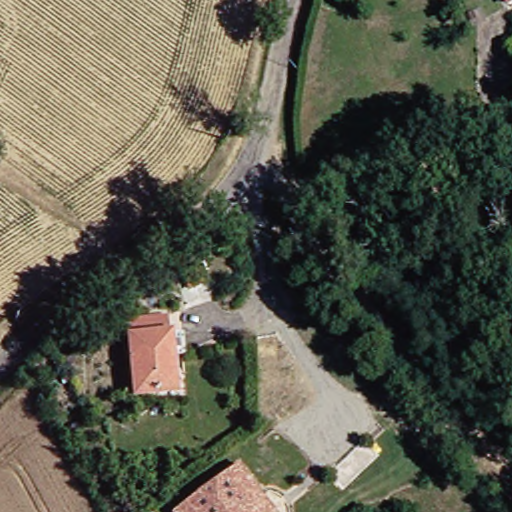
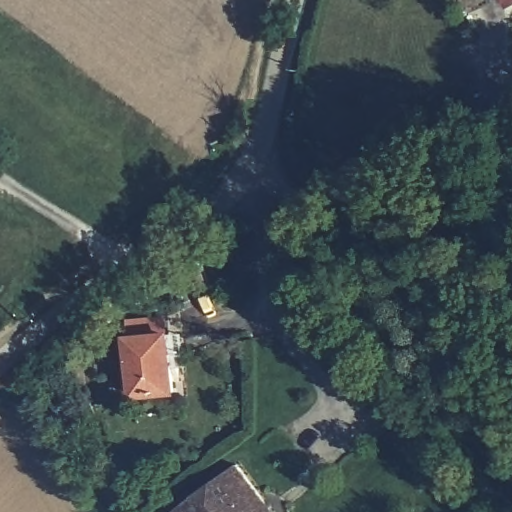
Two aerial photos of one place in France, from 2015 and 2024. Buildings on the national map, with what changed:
unchanged [(503,0),(508,0),(503,1),(503,0)]
unchanged [(134,396),(125,340),(165,333),(173,389),(134,396)]
unchanged [(237,466),(271,512),(173,512),(237,466)]

